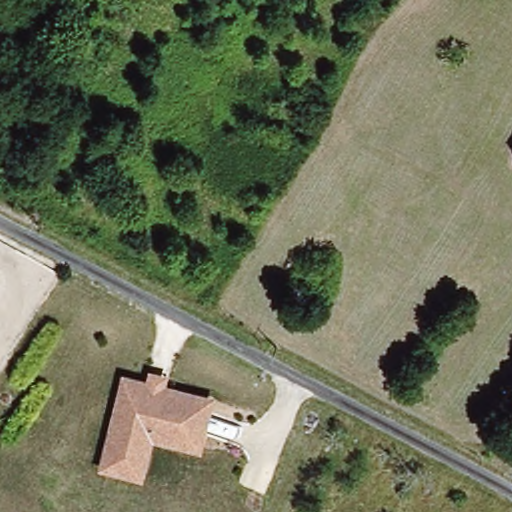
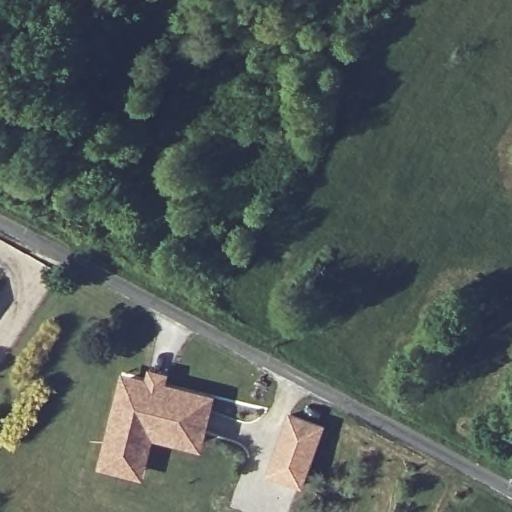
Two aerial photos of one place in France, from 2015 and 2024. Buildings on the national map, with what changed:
unchanged [(130,383),(152,388),(154,377),(170,378),(168,391),(215,403),(204,448),(154,438),(150,457),(145,477),(109,469),(114,449),(130,383)]
new [(289,412),(324,425),(302,485),(268,473),(289,412)]

